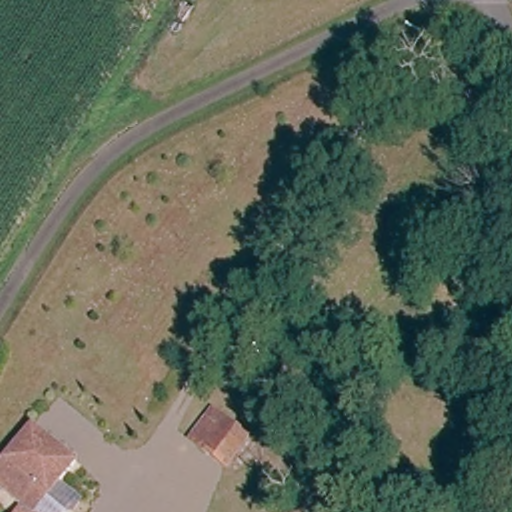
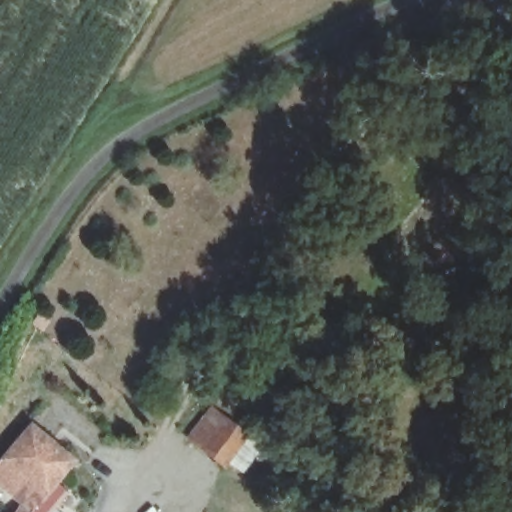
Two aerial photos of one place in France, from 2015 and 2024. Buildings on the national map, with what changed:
unchanged [(229,461),(207,445),(194,435),(215,406),(229,416),(250,432),(229,461)]
unchanged [(36,505),(0,476),(0,468),(35,425),(76,456),(36,505)]
unchanged [(31,512),(20,512),(23,507),(31,512)]

